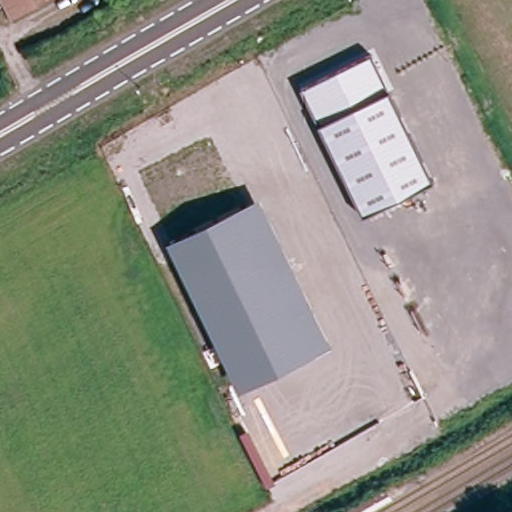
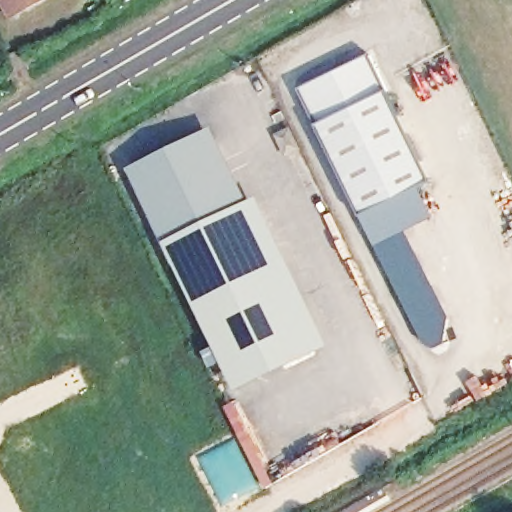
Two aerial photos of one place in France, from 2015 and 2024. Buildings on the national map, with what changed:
unchanged [(2,0),(53,0),(15,21),(2,0)]
unchanged [(433,180),(363,216),(302,91),(371,55),(433,180)]
new [(167,243),(130,169),(215,126),(252,200),(167,243)]
new [(420,187),(435,218),(407,232),(452,317),(446,343),(435,349),(426,345),(377,247),(376,247),(361,217),(363,216),(420,187)]
unchanged [(332,345),(239,391),(167,243),(258,197),(332,345)]

